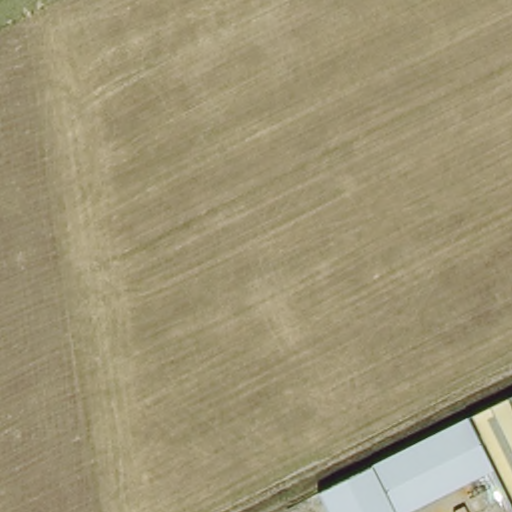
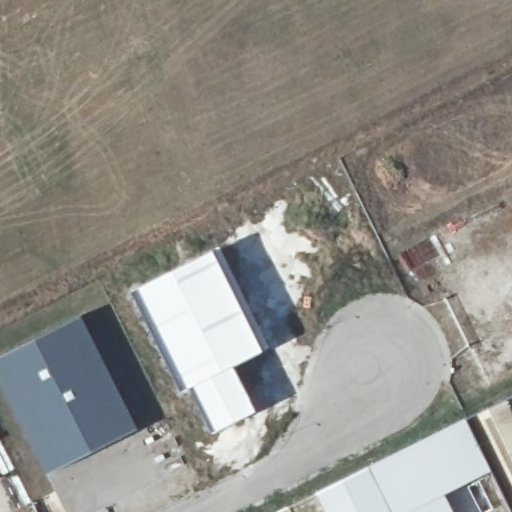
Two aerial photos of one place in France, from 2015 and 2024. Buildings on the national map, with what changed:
new [(220,246),(270,348),(234,366),(257,410),(214,435),(192,388),(183,392),(132,291),(220,246)]
new [(82,316),(138,429),(46,477),(0,384),(0,357),(82,316)]
unchanged [(512,398),(512,507),(468,419),(512,398)]
new [(468,419),(494,471),(416,512),(327,512),(318,493),(468,419)]

